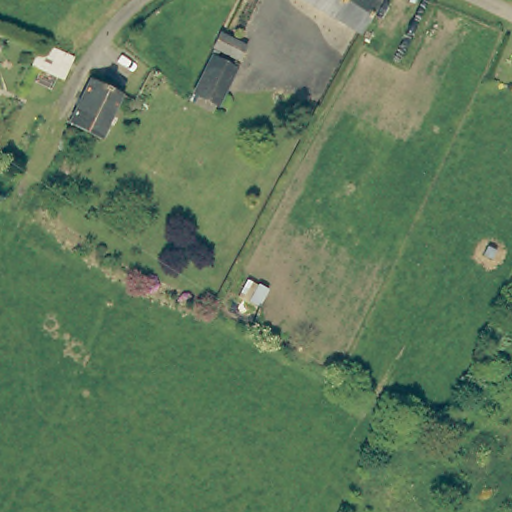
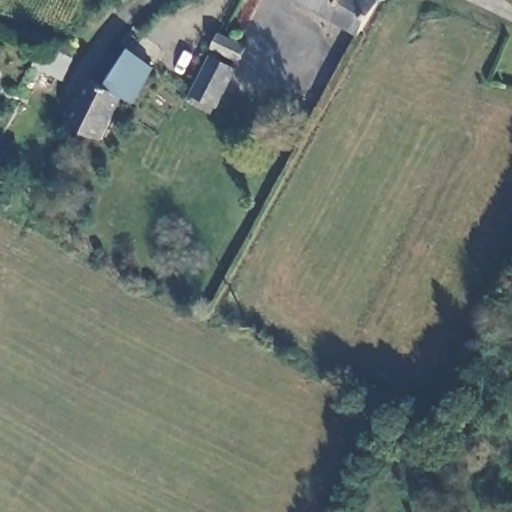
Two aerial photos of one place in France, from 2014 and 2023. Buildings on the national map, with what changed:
unchanged [(315,0),(329,0),(326,6),(315,0)]
unchanged [(329,0),(367,0),(355,22),(326,6),(329,0)]
unchanged [(212,37),(216,30),(241,42),(233,56),(208,44),(212,37)]
unchanged [(30,65),(40,44),(71,57),(61,77),(30,65)]
new [(138,102),(116,90),(108,86),(129,47),(156,67),(138,102)]
unchanged [(183,86),(204,51),(208,53),(231,64),(213,101),(199,94),(183,86)]
unchanged [(96,135),(76,126),(63,119),(85,76),(116,90),(96,135)]

